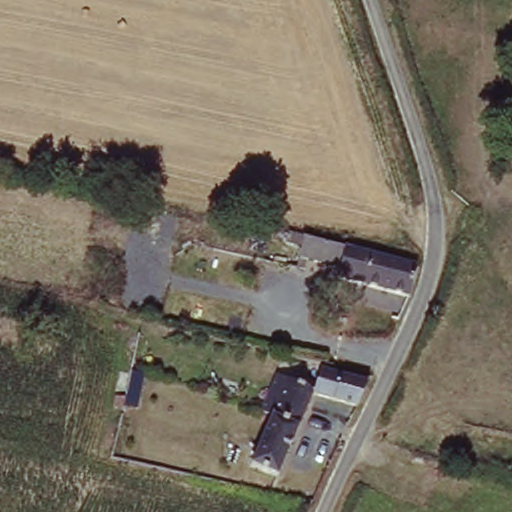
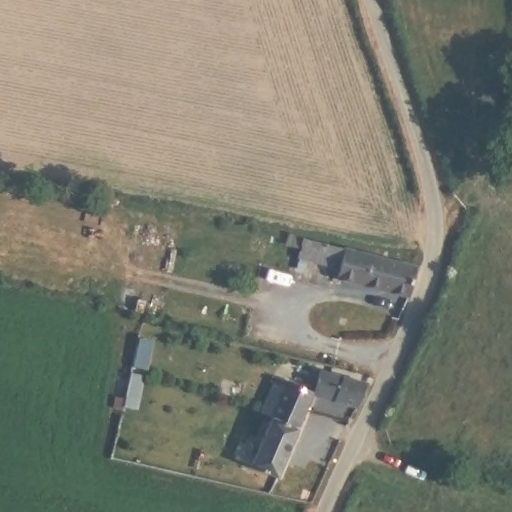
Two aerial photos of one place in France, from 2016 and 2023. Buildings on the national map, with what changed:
unchanged [(340,276),(342,268),(312,260),(308,270),(296,267),(300,248),(285,244),(287,235),(425,268),(424,272),(415,295),(340,276)]
unchanged [(255,460),(271,415),(263,412),(275,379),(313,393),(285,472),(255,460)]
unchanged [(329,403),(335,380),(365,383),(356,407),(329,403)]
unchanged [(109,400),(111,389),(124,391),(122,404),(109,400)]

